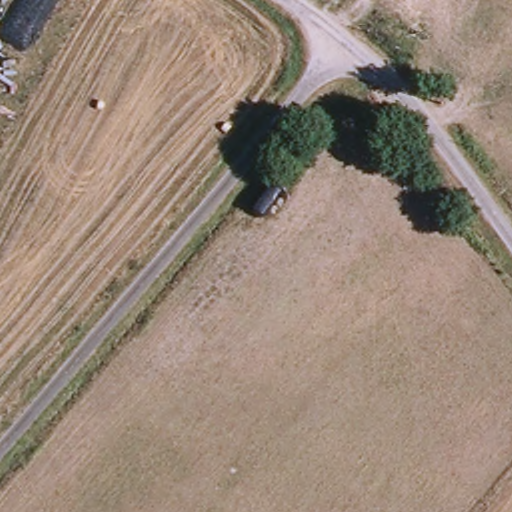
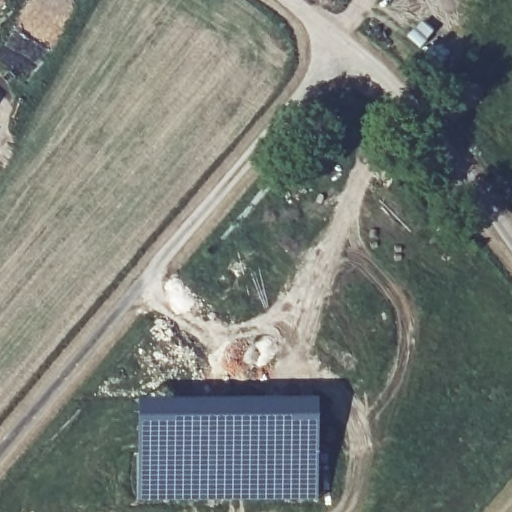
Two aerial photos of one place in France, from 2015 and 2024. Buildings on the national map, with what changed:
new [(138,400),(317,399),(317,499),(141,501),(138,400)]

